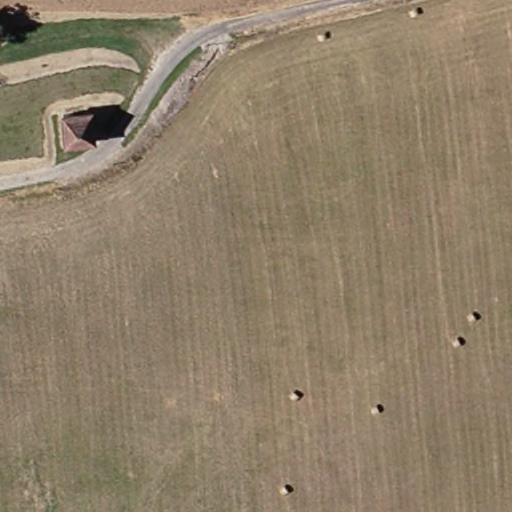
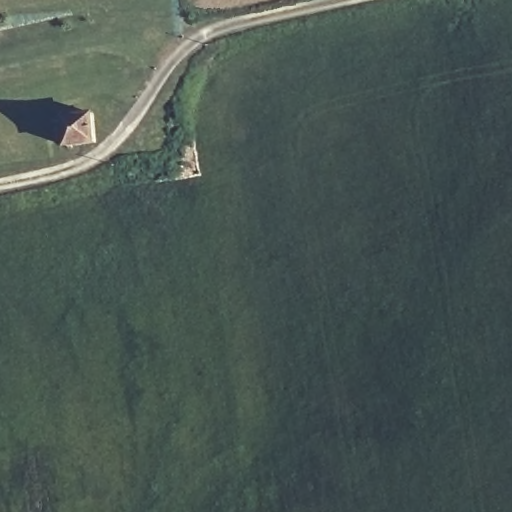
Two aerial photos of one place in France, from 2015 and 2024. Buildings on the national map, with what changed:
unchanged [(95,143),(65,145),(65,112),(94,112),(95,143)]

